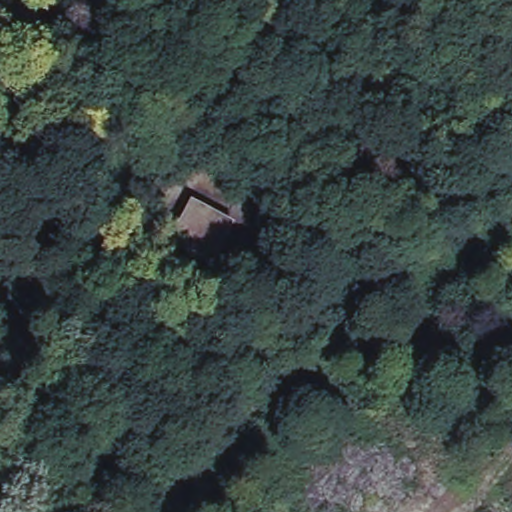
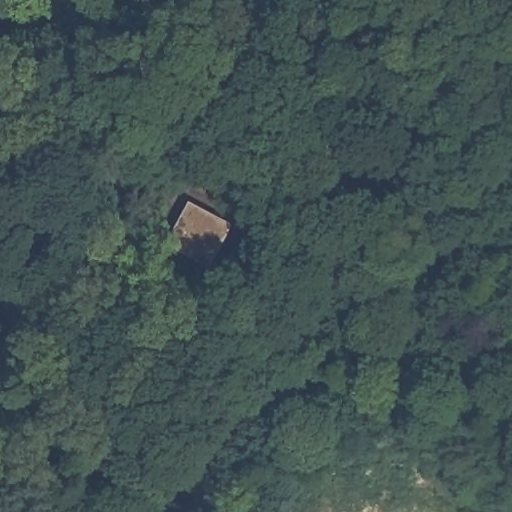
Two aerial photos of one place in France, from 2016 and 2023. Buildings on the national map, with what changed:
unchanged [(214,266),(172,245),(193,203),(236,225),(214,266)]

